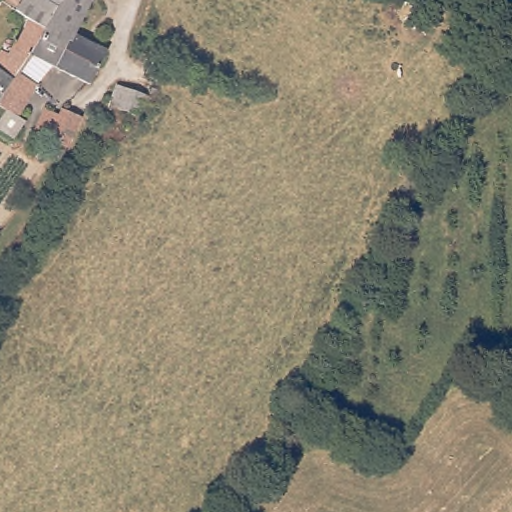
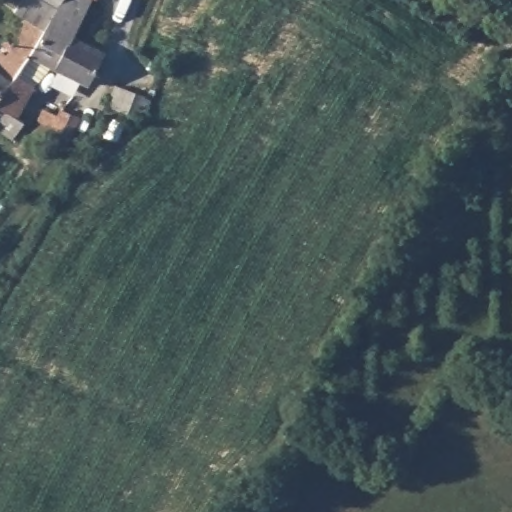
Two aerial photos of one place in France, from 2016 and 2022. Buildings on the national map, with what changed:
unchanged [(97,64),(88,85),(46,64),(16,117),(22,120),(10,138),(0,132),(0,61),(27,20),(13,12),(21,0),(91,0),(74,32),(105,50),(97,64)]
unchanged [(144,119),(110,109),(116,86),(150,95),(144,119)]
unchanged [(62,146),(32,127),(44,108),(55,115),(60,109),(78,118),(62,146)]

